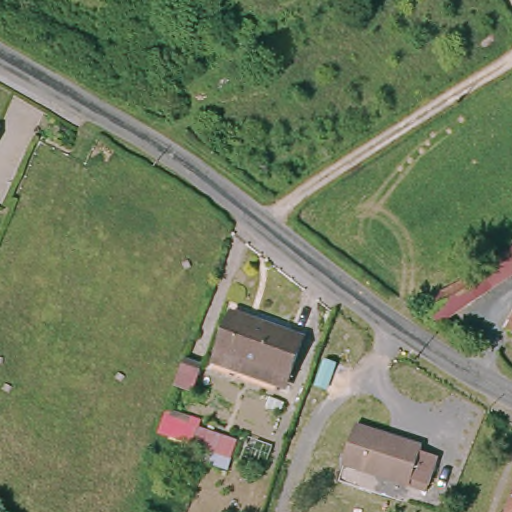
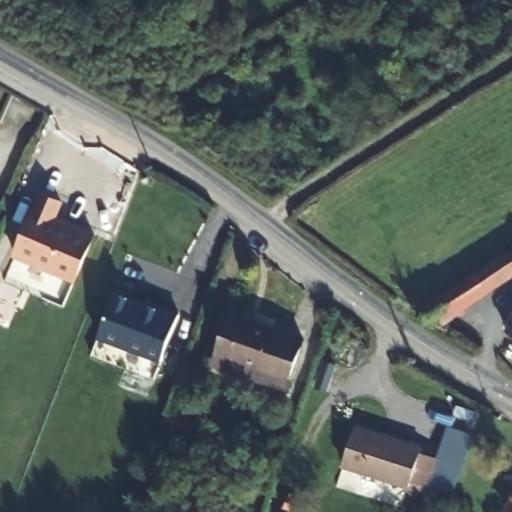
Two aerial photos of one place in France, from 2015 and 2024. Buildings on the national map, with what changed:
unchanged [(187,4),(202,22),(115,95),(99,76),(187,4)]
unchanged [(200,35),(206,26),(212,19),(243,40),(246,43),(234,59),(225,52),(200,35)]
new [(16,254),(40,191),(61,200),(55,215),(95,232),(76,277),(16,254)]
unchanged [(512,248),(512,279),(440,331),(420,312),(475,273),(512,248)]
new [(162,362),(100,339),(115,300),(127,304),(130,295),(147,302),(145,306),(157,310),(159,305),(180,312),(170,338),(162,362)]
unchanged [(235,318),(299,341),(282,391),(218,368),(235,318)]
unchanged [(512,326),(512,334),(509,333),(512,326)]
unchanged [(187,373),(179,398),(163,395),(171,369),(187,373)]
unchanged [(222,450),(219,465),(148,443),(153,427),(222,450)]
unchanged [(342,464),(355,428),(422,450),(422,455),(437,460),(429,490),(412,484),(409,490),(342,464)]

